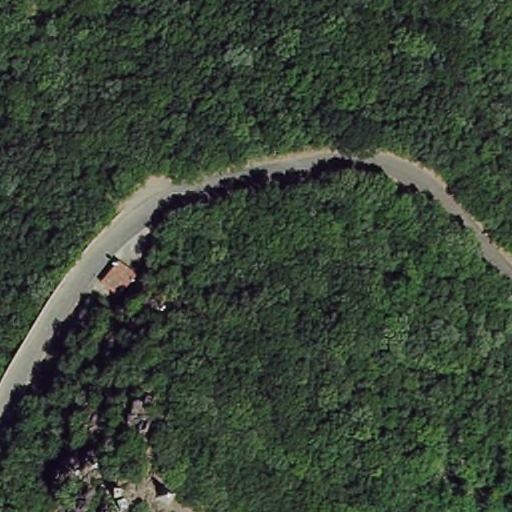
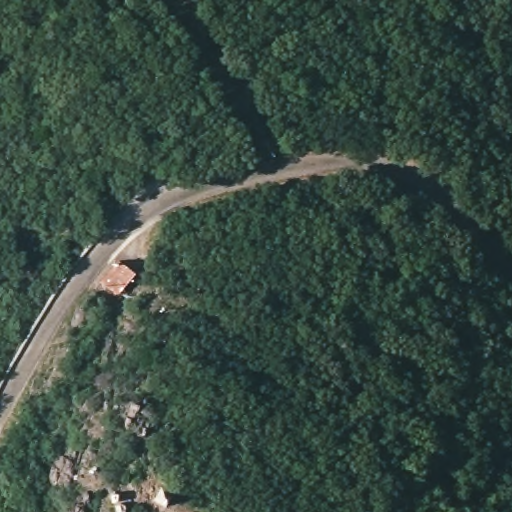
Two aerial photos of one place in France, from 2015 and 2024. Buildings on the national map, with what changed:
unchanged [(106,266),(129,247),(147,264),(127,286),(106,266)]

